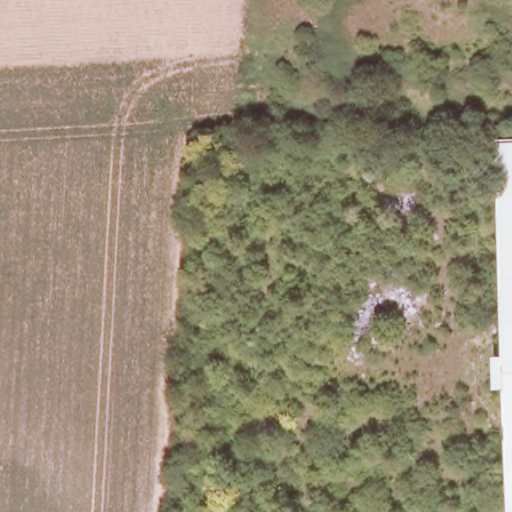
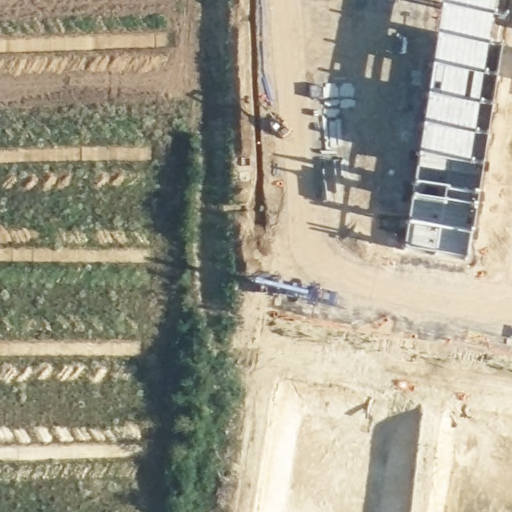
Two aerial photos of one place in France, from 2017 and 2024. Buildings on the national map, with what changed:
new [(440,0),(505,0),(465,260),(401,253),(440,0)]
demolished [(512,512),(505,512),(503,389),(490,387),(490,351),(504,352),(495,137),(512,137),(512,512)]

